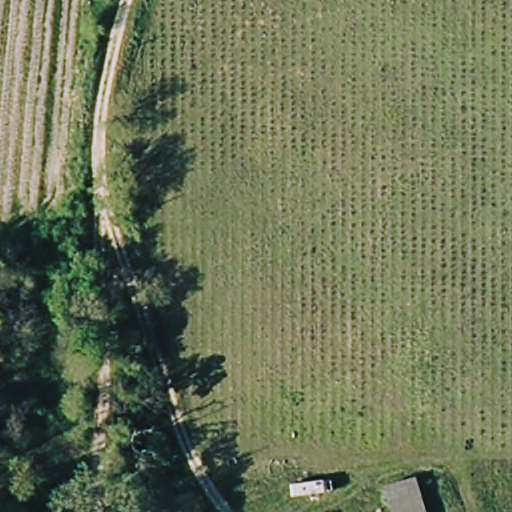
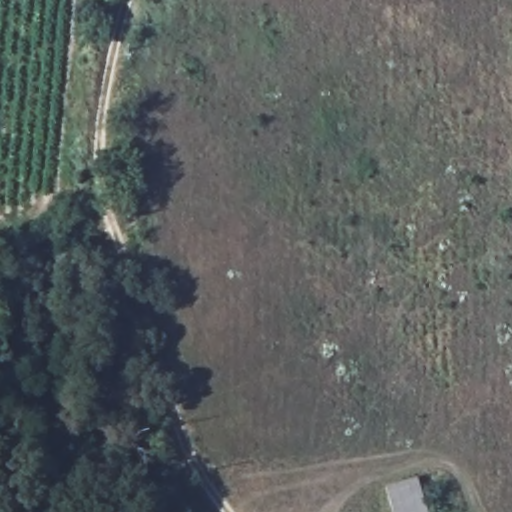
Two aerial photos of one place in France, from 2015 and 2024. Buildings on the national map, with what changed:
unchanged [(430,512),(395,512),(387,485),(420,475),(430,512)]

